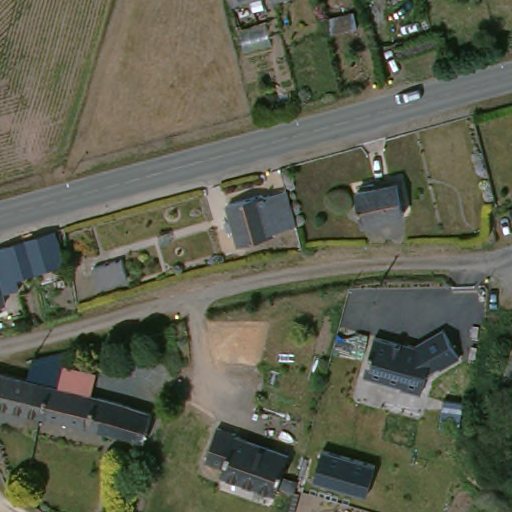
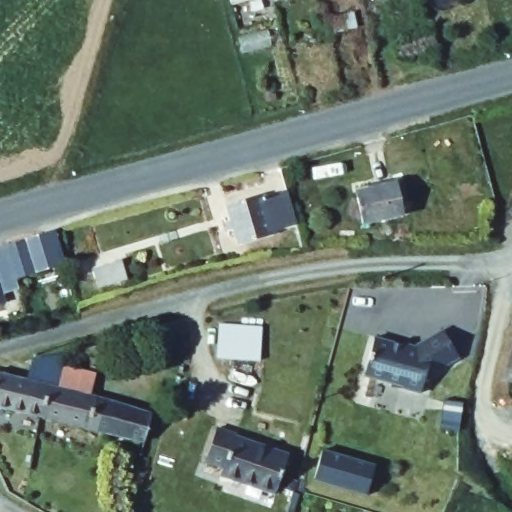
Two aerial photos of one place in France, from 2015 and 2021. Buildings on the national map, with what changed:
unchanged [(396,179),(403,208),(359,218),(353,190),(396,179)]
unchanged [(243,240),(231,203),(290,187),(298,225),(243,240)]
unchanged [(512,230),(512,239),(509,240),(504,234),(512,230)]
unchanged [(51,236),(59,268),(19,278),(11,246),(51,236)]
unchanged [(138,249),(141,266),(114,273),(110,257),(138,249)]
unchanged [(8,269),(14,295),(4,297),(7,306),(0,308),(0,270),(8,269)]
new [(260,359),(217,357),(219,324),(261,327),(260,359)]
unchanged [(418,345),(423,346),(453,330),(469,358),(450,369),(449,367),(436,374),(431,393),(411,388),(411,386),(373,375),(383,337),(418,345)]
unchanged [(26,378),(35,380),(39,361),(68,358),(62,387),(154,408),(148,437),(43,412),(0,403),(0,373),(26,378)]
unchanged [(512,391),(507,389),(512,373),(512,391)]
unchanged [(221,431),(248,439),(248,447),(294,461),(283,502),(225,485),(227,476),(208,470),(221,431)]
unchanged [(366,495),(313,479),(323,447),(376,463),(366,495)]

